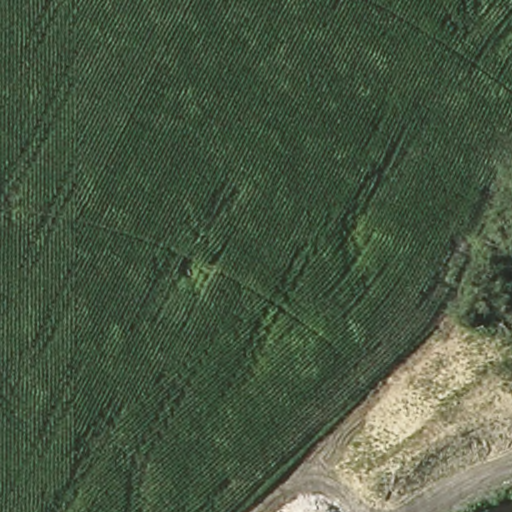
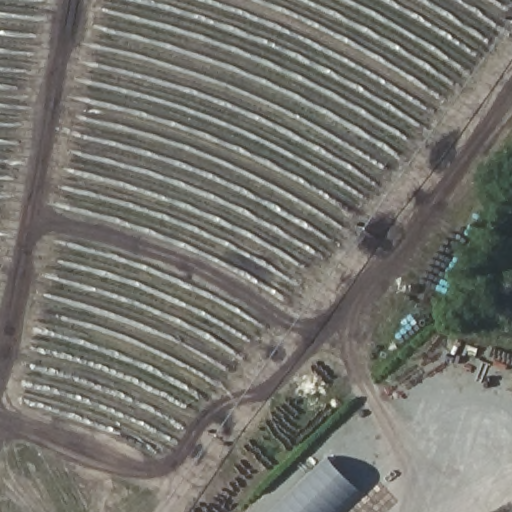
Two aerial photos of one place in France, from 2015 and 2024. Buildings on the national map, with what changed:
new [(332,512),(277,512),(331,460),(358,487),(332,512)]

